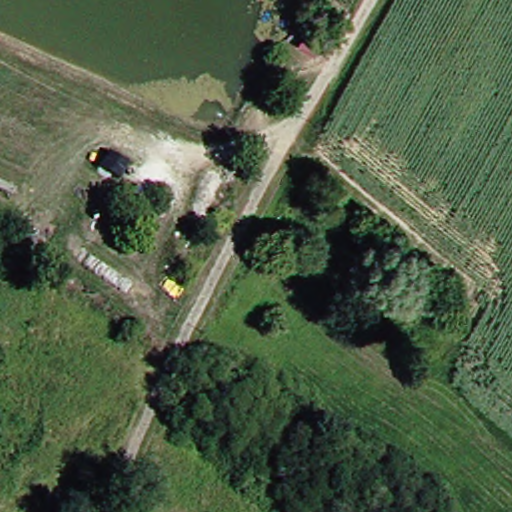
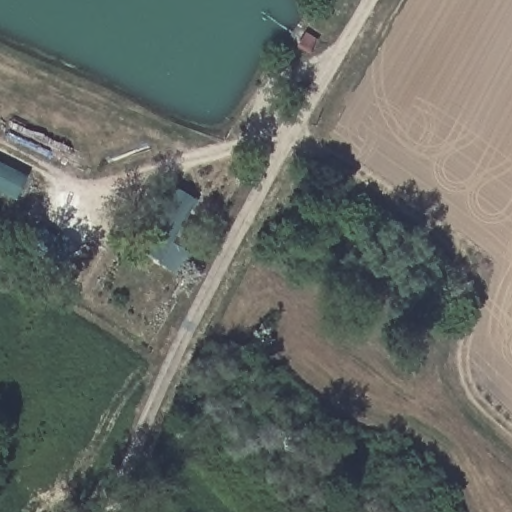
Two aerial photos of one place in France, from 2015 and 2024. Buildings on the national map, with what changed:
new [(0,194),(0,163),(26,176),(14,200),(0,194)]

